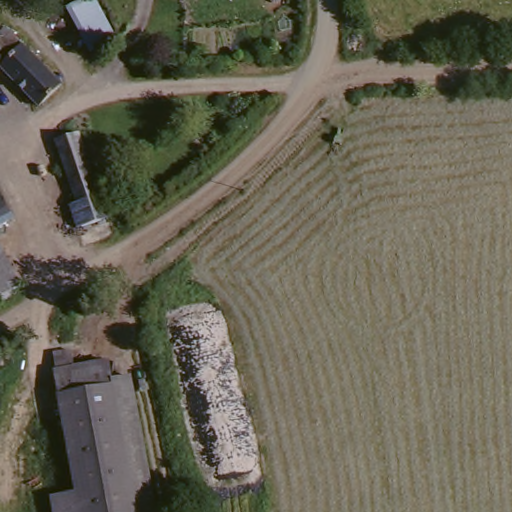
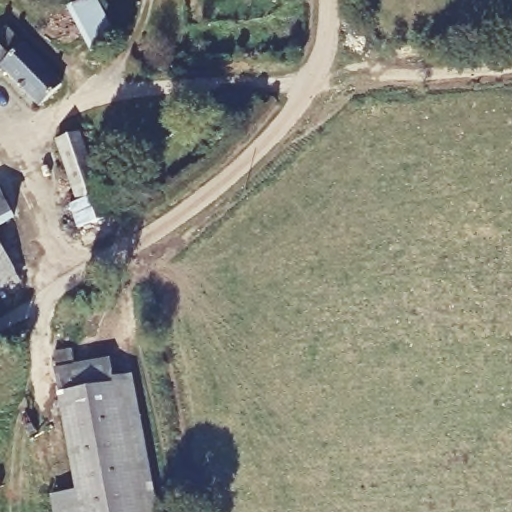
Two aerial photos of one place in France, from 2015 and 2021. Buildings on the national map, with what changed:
unchanged [(82,0),(97,0),(119,41),(90,56),(65,8),(82,0)]
unchanged [(281,1),(281,0),(285,0),(281,1)]
unchanged [(3,43),(10,38),(11,38),(14,38),(18,40),(21,43),(23,47),(23,51),(21,55),(18,58),(33,47),(39,53),(43,57),(68,83),(70,85),(48,107),(11,70),(0,78),(0,38),(3,43)]
unchanged [(86,225),(78,204),(86,201),(62,138),(86,129),(114,208),(116,214),(90,223),(86,225)]
unchanged [(4,190),(18,221),(0,228),(0,192),(4,190)]
unchanged [(13,266),(0,272),(0,238),(13,266)]
unchanged [(13,266),(20,281),(22,284),(0,295),(0,272),(13,266)]
unchanged [(56,365),(58,364),(54,349),(74,346),(76,359),(111,353),(113,369),(133,366),(141,403),(68,419),(56,365)]
unchanged [(63,512),(60,497),(83,492),(68,419),(141,403),(164,512),(63,512)]

